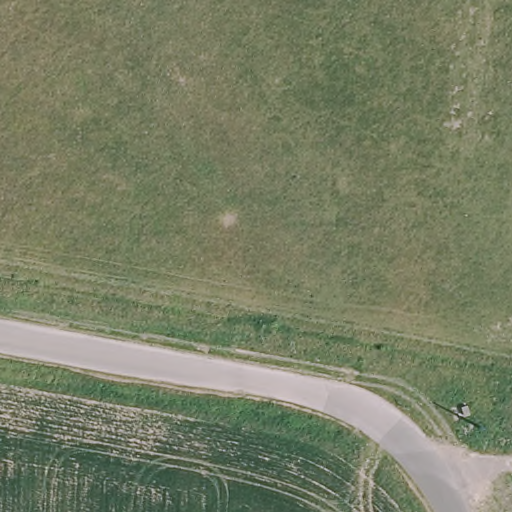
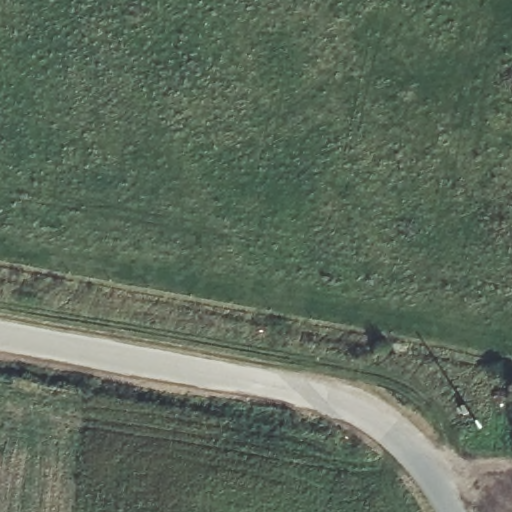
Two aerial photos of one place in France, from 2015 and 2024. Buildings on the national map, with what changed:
[]

